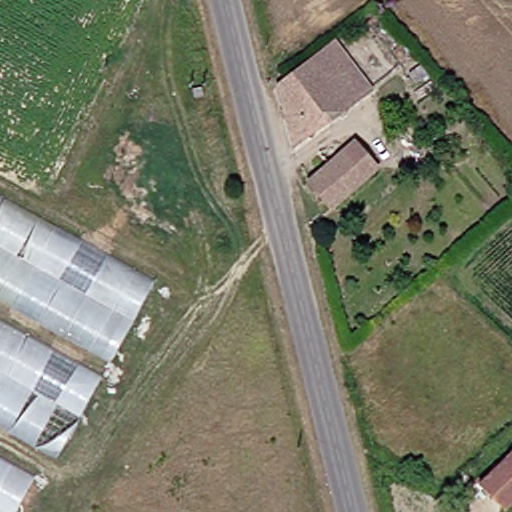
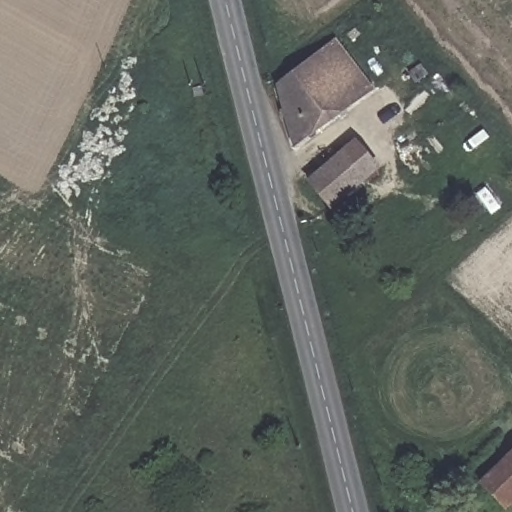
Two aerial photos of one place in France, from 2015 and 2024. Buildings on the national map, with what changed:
demolished [(99,66),(39,172),(0,151),(0,14),(99,66)]
unchanged [(277,85),(338,37),(372,82),(298,140),(277,85)]
unchanged [(377,161),(331,202),(313,181),(360,141),(377,161)]
demolished [(114,352),(0,291),(0,194),(157,280),(114,352)]
demolished [(103,375),(61,450),(0,417),(0,318),(103,375)]
demolished [(0,512),(0,454),(37,475),(17,512),(0,512)]
unchanged [(512,454),(512,493),(502,500),(483,477),(512,454)]

